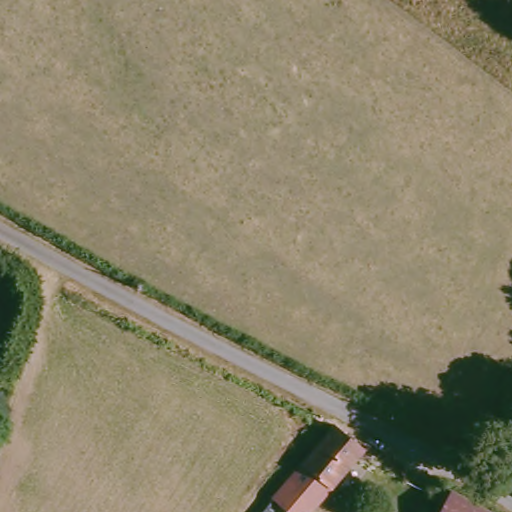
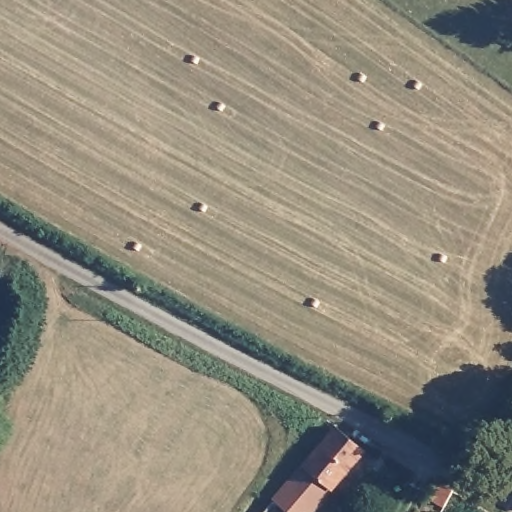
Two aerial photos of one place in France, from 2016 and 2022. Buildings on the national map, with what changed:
unchanged [(340,488),(327,502),(292,475),(337,416),(370,442),(351,467),(362,475),(347,495),(340,488)]
unchanged [(286,481),(304,495),(293,508),(298,512),(263,512),(286,481)]
unchanged [(500,512),(443,512),(446,506),(439,500),(451,485),(501,511),(500,512)]

